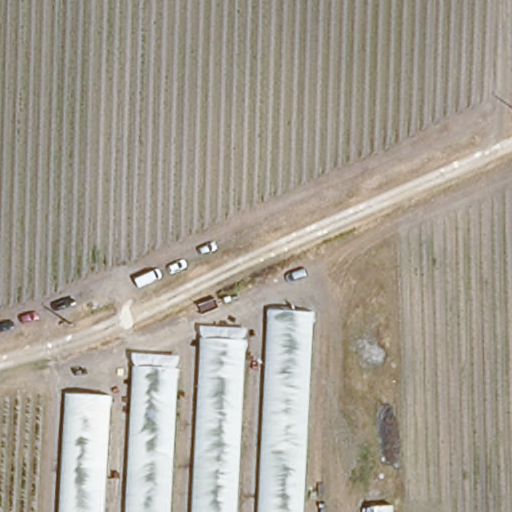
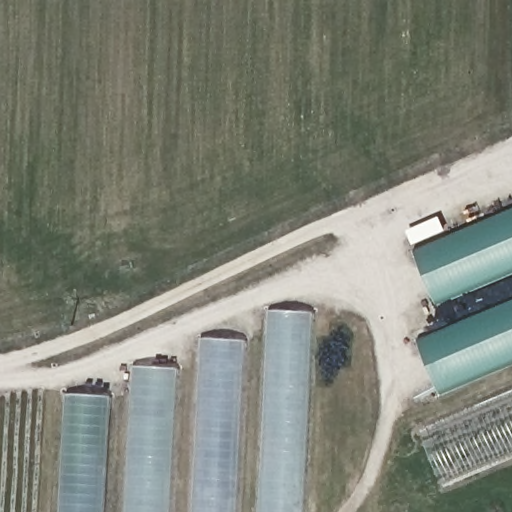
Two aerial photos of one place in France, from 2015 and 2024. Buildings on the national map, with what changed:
new [(512,207),(512,272),(436,305),(412,250),(512,207)]
new [(512,299),(512,365),(439,395),(417,340),(512,299)]
unchanged [(304,512),(259,512),(268,311),(314,313),(304,512)]
unchanged [(238,512),(191,512),(200,338),(246,340),(238,512)]
unchanged [(172,512),(125,512),(133,365),(179,369),(172,512)]
unchanged [(63,512),(70,394),(112,395),(106,512),(63,512)]
new [(424,437),(512,397),(512,453),(442,484),(424,437)]

